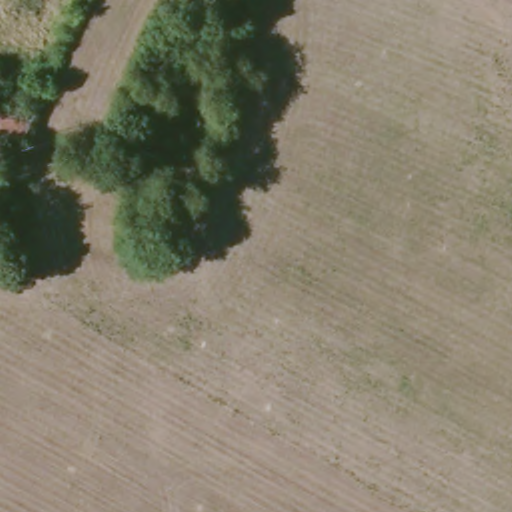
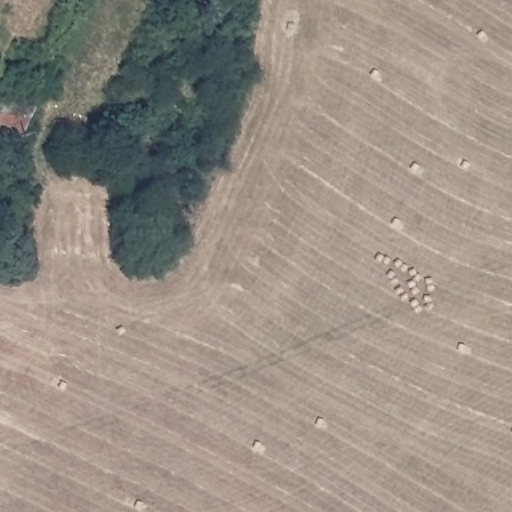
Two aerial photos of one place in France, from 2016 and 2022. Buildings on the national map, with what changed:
unchanged [(19,139),(0,141),(0,98),(37,106),(19,139)]

